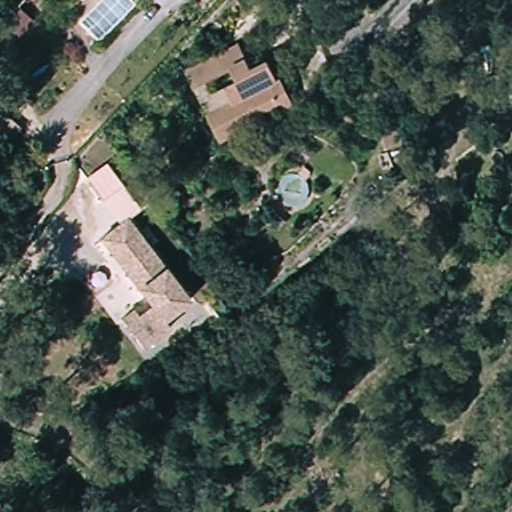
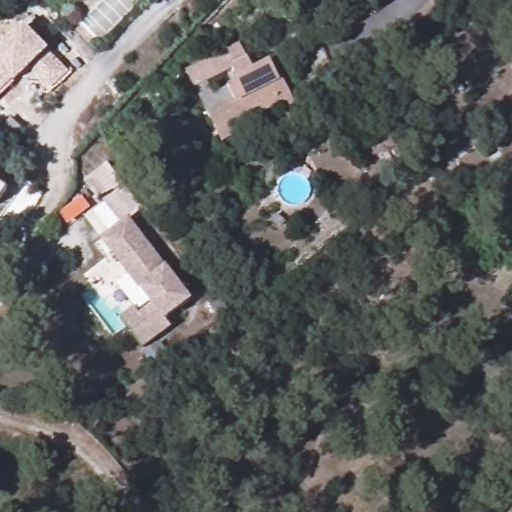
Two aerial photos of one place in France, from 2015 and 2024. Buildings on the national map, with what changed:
unchanged [(459,0),(428,29),(418,17),(436,0),(459,0)]
new [(48,51),(69,73),(51,91),(30,68),(14,84),(0,97),(0,46),(23,24),(48,51)]
unchanged [(218,128),(187,75),(236,44),(253,67),(268,57),(283,77),(287,74),(302,99),(289,107),(283,100),(268,110),(273,119),(251,132),(228,145),(218,128)]
new [(0,147),(0,109),(19,130),(0,147)]
new [(0,209),(0,192),(8,199),(0,209)]
unchanged [(136,311),(142,319),(154,308),(127,275),(113,258),(100,242),(124,221),(190,300),(166,320),(173,328),(146,351),(128,330),(123,322),(136,311)]

